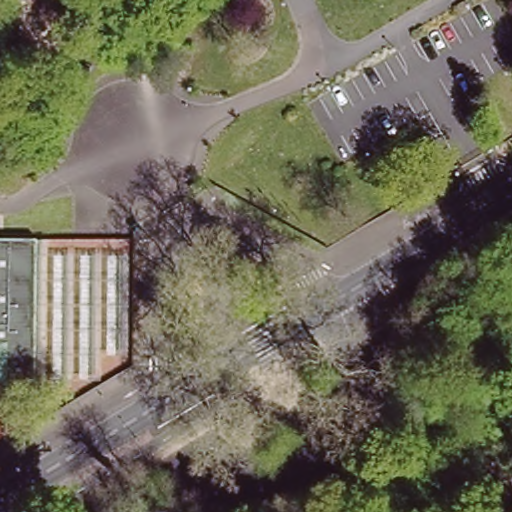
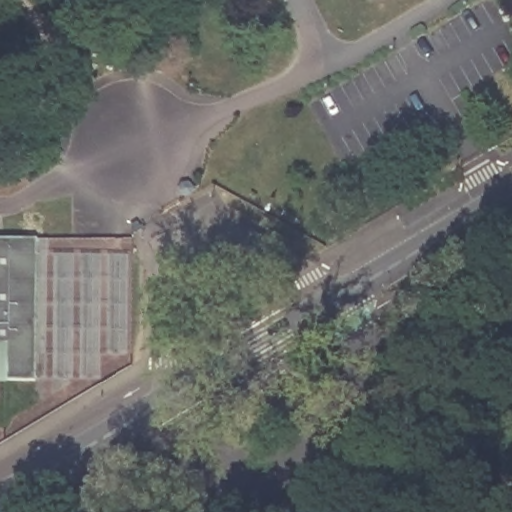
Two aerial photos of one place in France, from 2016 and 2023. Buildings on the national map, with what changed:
unchanged [(32,382),(7,384),(0,384),(0,239),(34,239),(32,382)]

